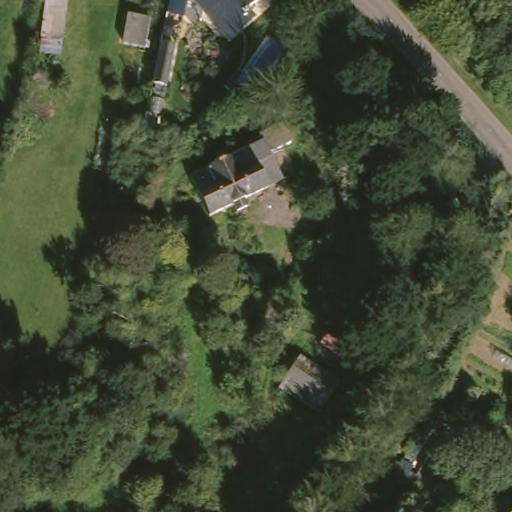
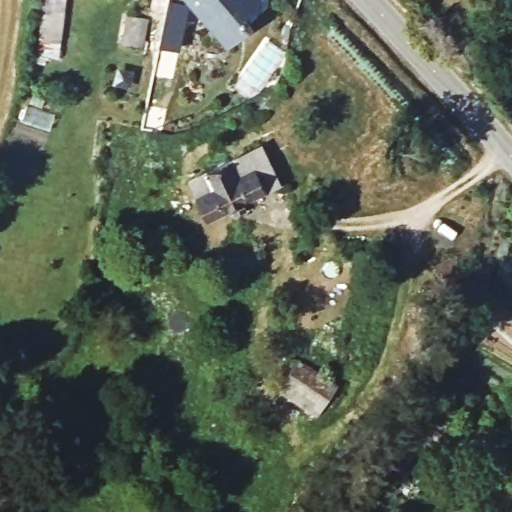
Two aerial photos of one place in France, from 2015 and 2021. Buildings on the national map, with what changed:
unchanged [(162,12),(166,0),(183,0),(178,17),(162,12)]
unchanged [(244,16),(226,34),(222,29),(217,34),(201,15),(206,11),(199,2),(197,0),(252,0),(240,11),(244,16)]
unchanged [(141,6),(139,35),(127,34),(129,5),(141,6)]
unchanged [(150,35),(156,35),(162,37),(154,78),(143,76),(141,75),(150,35)]
unchanged [(245,200),(249,209),(239,214),(235,205),(207,217),(188,176),(282,132),(291,151),(272,160),(282,182),(245,200)]
unchanged [(300,357),(337,382),(320,413),(282,391),(300,357)]
unchanged [(512,512),(508,512),(511,504),(512,504),(512,512)]

